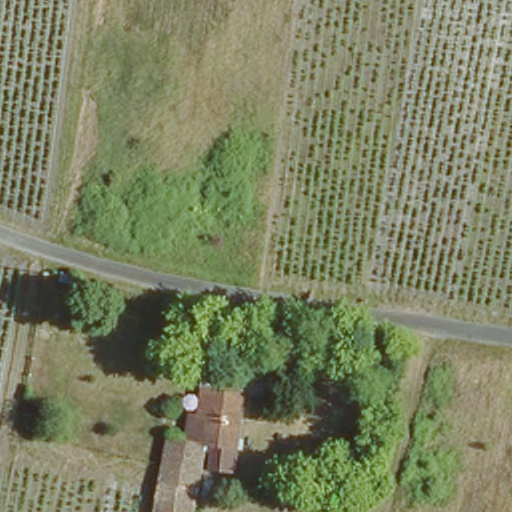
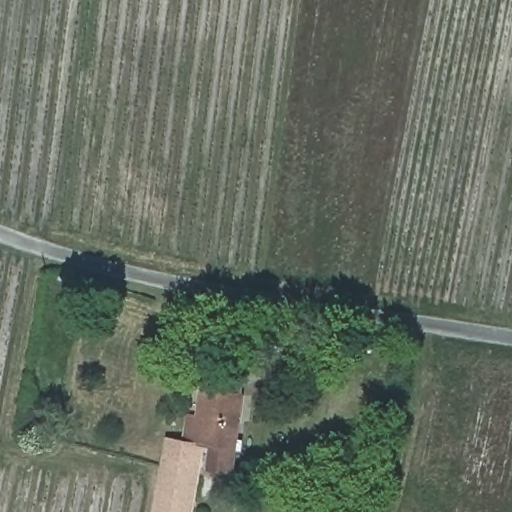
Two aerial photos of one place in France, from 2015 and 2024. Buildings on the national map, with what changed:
unchanged [(146,294),(190,304),(187,318),(143,304),(146,294)]
unchanged [(48,427),(22,425),(27,396),(40,398),(40,406),(49,407),(48,427)]
unchanged [(178,455),(183,424),(192,424),(196,412),(203,413),(205,406),(241,411),(237,431),(229,484),(211,482),(214,459),(202,458),(192,512),(161,512),(165,487),(171,456),(178,455)]

